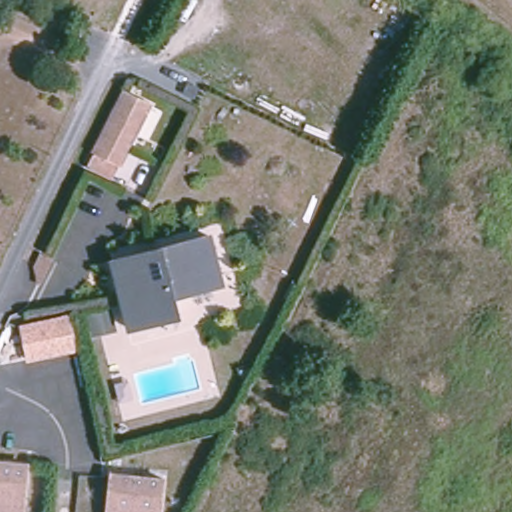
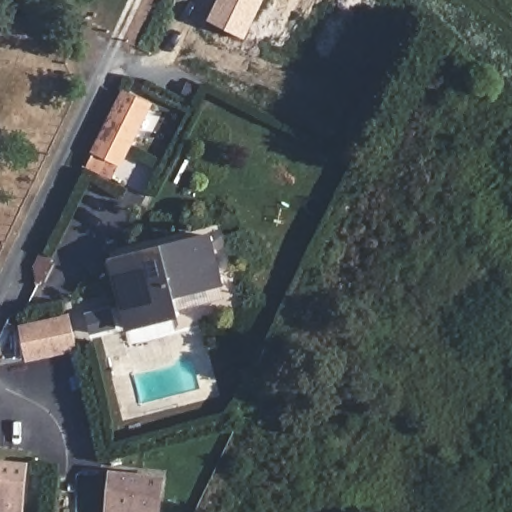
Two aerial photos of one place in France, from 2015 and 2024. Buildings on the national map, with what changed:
new [(218,0),(264,0),(244,40),(207,21),(218,0)]
unchanged [(151,105),(114,181),(90,170),(127,92),(151,105)]
unchanged [(209,238),(219,286),(171,297),(175,317),(125,327),(113,259),(209,238)]
unchanged [(76,354),(26,364),(19,324),(69,314),(76,354)]
unchanged [(20,464),(15,505),(14,512),(0,512),(0,461),(20,464)]
unchanged [(111,469),(138,472),(160,475),(155,512),(104,512),(104,508),(111,469)]

